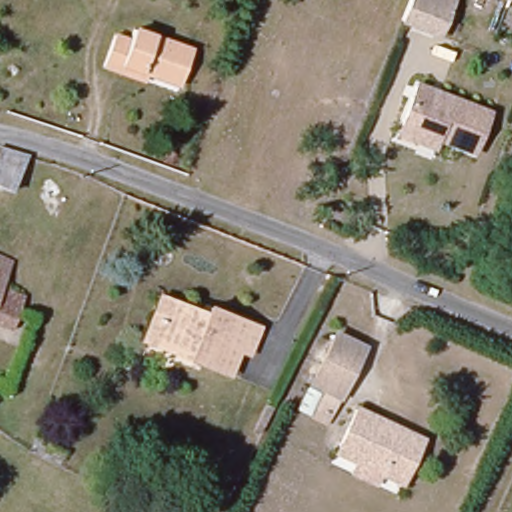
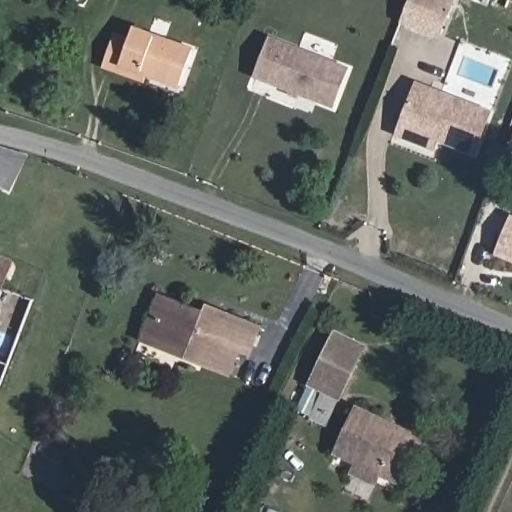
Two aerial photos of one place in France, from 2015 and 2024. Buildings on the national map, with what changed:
unchanged [(401,22),(408,0),(450,0),(448,7),(438,35),(401,22)]
unchanged [(175,90),(116,67),(111,76),(96,70),(110,37),(125,45),(129,31),(185,51),(175,90)]
new [(300,98),(299,100),(288,96),(289,92),(255,79),(270,37),(351,67),(335,110),(300,98)]
unchanged [(398,135),(401,125),(415,84),(488,110),(474,151),(438,138),(434,147),(398,135)]
new [(495,255),(512,215),(512,262),(495,255)]
unchanged [(0,262),(9,266),(0,292),(0,262)]
unchanged [(6,332),(0,330),(0,292),(19,300),(6,332)]
unchanged [(200,308),(259,332),(250,355),(237,350),(227,377),(145,346),(135,342),(151,299),(161,302),(196,316),(200,308)]
unchanged [(327,396),(305,386),(339,330),(371,347),(342,403),(338,401),(327,396)]
unchanged [(305,386),(338,401),(325,428),(293,412),(305,386)]
unchanged [(350,468),(339,464),(334,461),(354,413),(362,416),(401,433),(378,480),(350,468)]
unchanged [(421,441),(399,490),(381,482),(378,480),(401,433),(421,441)]

